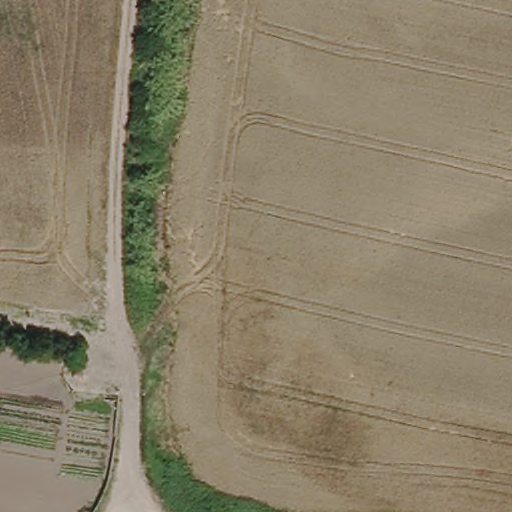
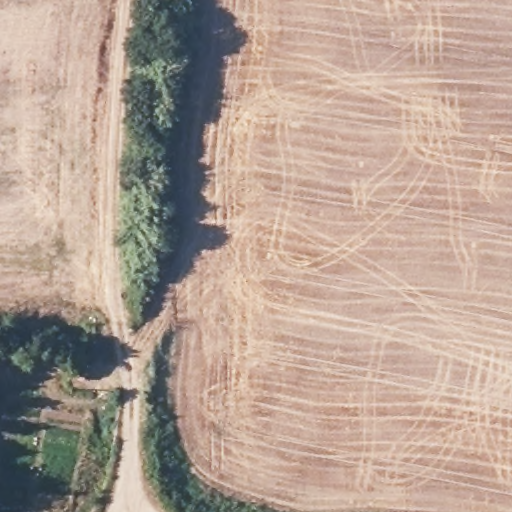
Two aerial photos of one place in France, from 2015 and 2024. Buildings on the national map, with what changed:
unchanged [(75,383),(75,369),(96,368),(95,383),(75,383)]

